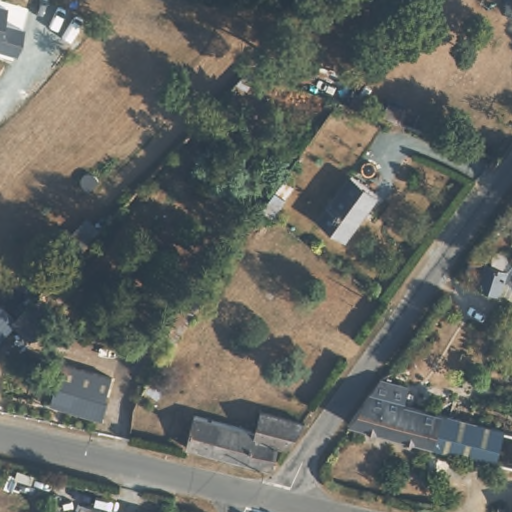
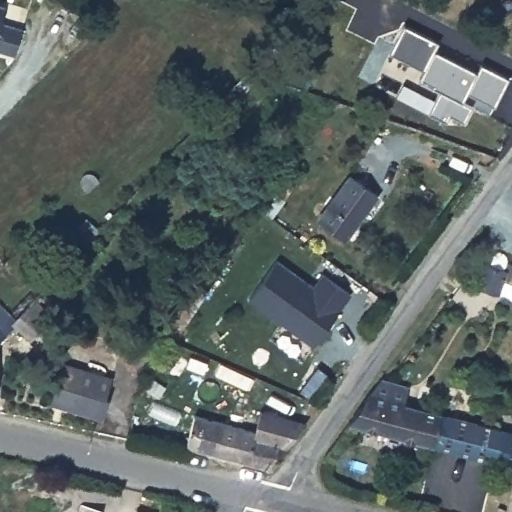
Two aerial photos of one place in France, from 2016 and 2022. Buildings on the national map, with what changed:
unchanged [(5,8),(1,23),(25,29),(15,56),(0,52),(0,6),(5,8)]
new [(440,91),(417,79),(423,69),(388,53),(403,24),(438,41),(434,49),(476,71),(479,64),(508,78),(495,106),(465,91),(460,101),(470,106),(463,122),(449,115),(445,122),(427,113),(440,91)]
unchanged [(375,187),(365,199),(371,204),(349,235),(322,214),(354,172),(375,187)]
new [(275,259),(310,285),(320,272),(349,294),(311,347),(246,299),(275,259)]
unchanged [(7,322),(30,299),(39,309),(17,331),(7,322)]
unchanged [(7,322),(0,329),(0,316),(7,322)]
unchanged [(51,404),(62,363),(112,376),(106,398),(109,399),(104,419),(51,404)]
unchanged [(152,378),(164,386),(162,388),(157,397),(145,389),(152,378)]
unchanged [(347,422),(378,378),(393,383),(392,396),(402,398),(402,402),(438,410),(433,426),(430,441),(347,422)]
unchanged [(286,448),(281,444),(271,469),(188,448),(195,417),(256,432),(258,411),(305,423),(286,448)]
unchanged [(438,412),(502,433),(495,463),(430,441),(438,412)]
unchanged [(82,501),(101,506),(100,512),(80,512),(82,501)]
unchanged [(139,507),(157,512),(137,512),(139,507)]
unchanged [(192,511),(197,512),(192,512),(192,511)]

